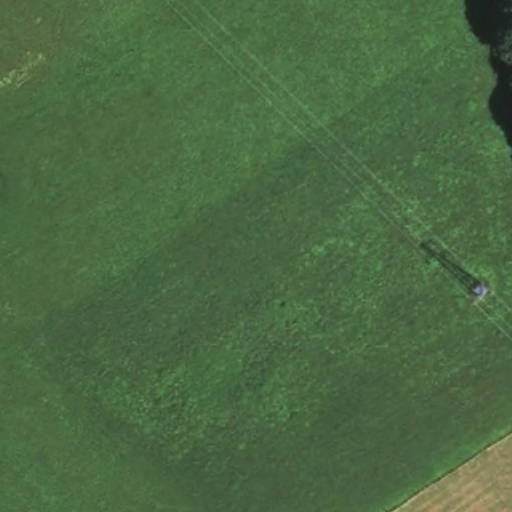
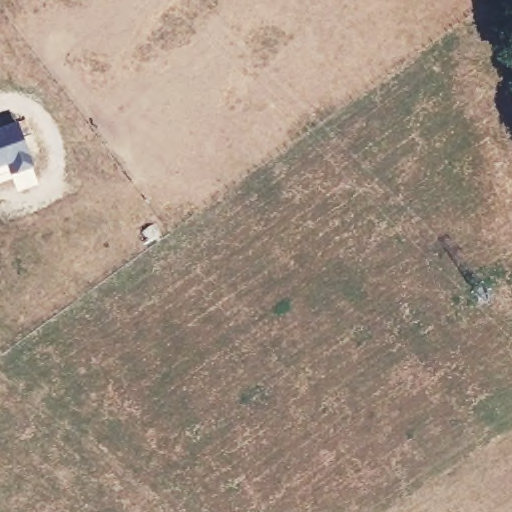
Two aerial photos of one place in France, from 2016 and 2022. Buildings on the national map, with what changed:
new [(25,145),(4,152),(0,153),(0,130),(18,124),(25,145)]
new [(25,145),(32,165),(11,171),(7,160),(0,163),(0,153),(4,152),(25,145)]

